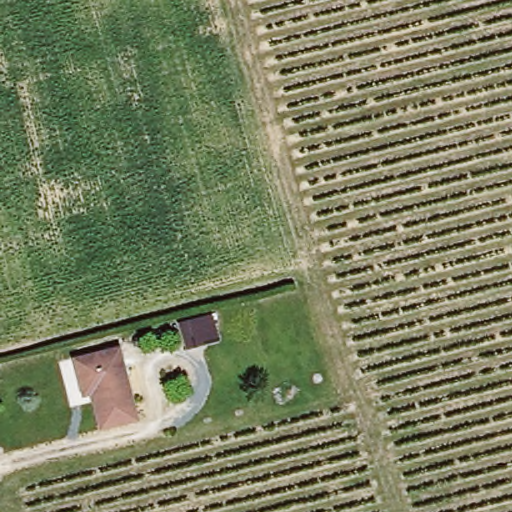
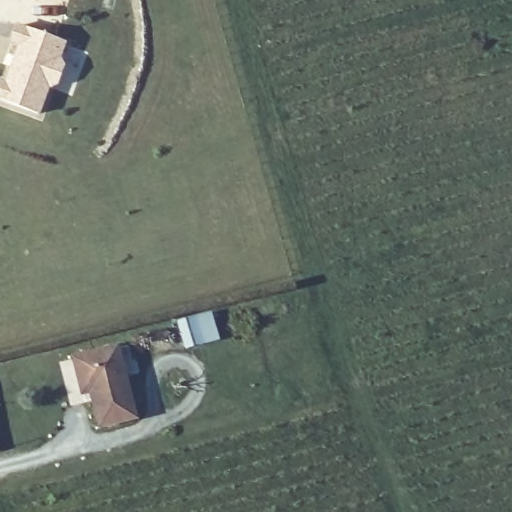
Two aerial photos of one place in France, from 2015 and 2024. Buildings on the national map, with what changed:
new [(65,66),(57,86),(51,89),(40,116),(0,101),(0,82),(1,78),(5,81),(17,46),(9,44),(16,24),(66,43),(61,58),(65,66)]
unchanged [(194,329),(199,351),(185,355),(179,333),(194,329)]
unchanged [(121,350),(137,415),(101,424),(93,393),(84,392),(77,360),(121,350)]

